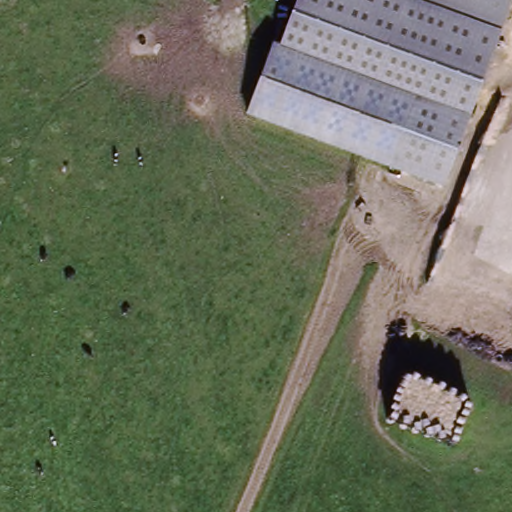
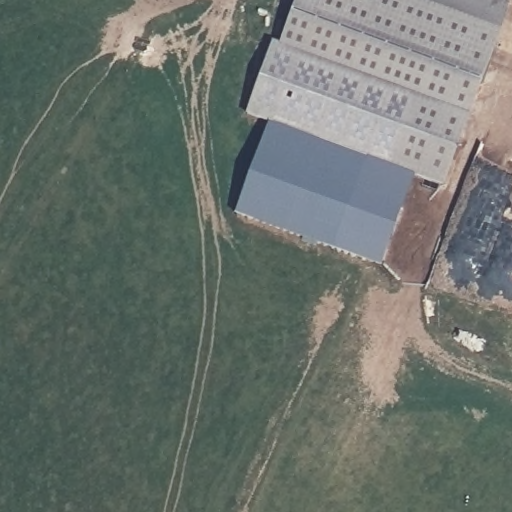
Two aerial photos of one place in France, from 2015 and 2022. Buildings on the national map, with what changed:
unchanged [(501,32),(471,117),(443,190),(245,116),(271,44),(278,46),(295,0),(421,0),(498,32),(501,32)]
unchanged [(421,0),(510,0),(498,32),(421,0)]
new [(415,179),(382,267),(233,215),(268,125),(415,179)]

